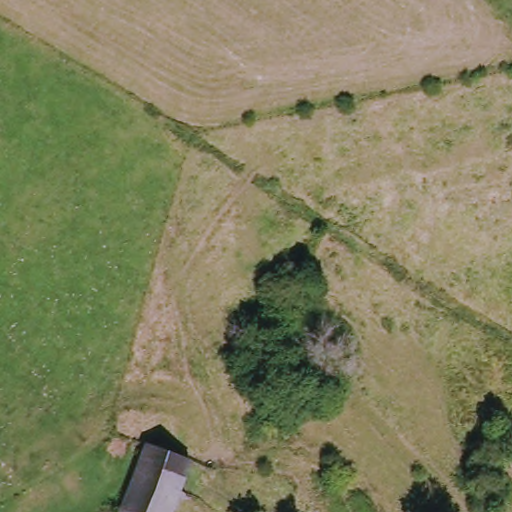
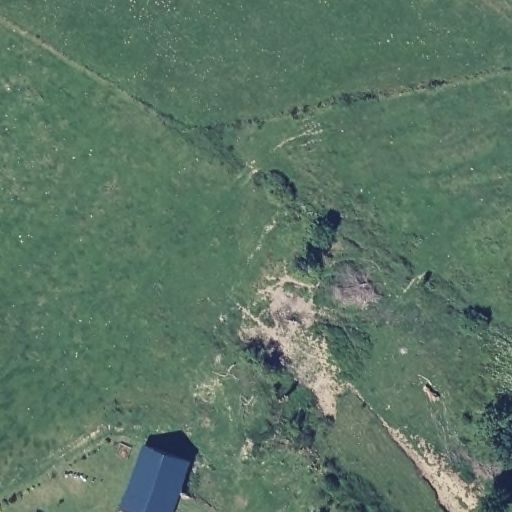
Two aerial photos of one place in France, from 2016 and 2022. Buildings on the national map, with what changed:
unchanged [(195,464),(177,512),(125,512),(148,447),(195,464)]

